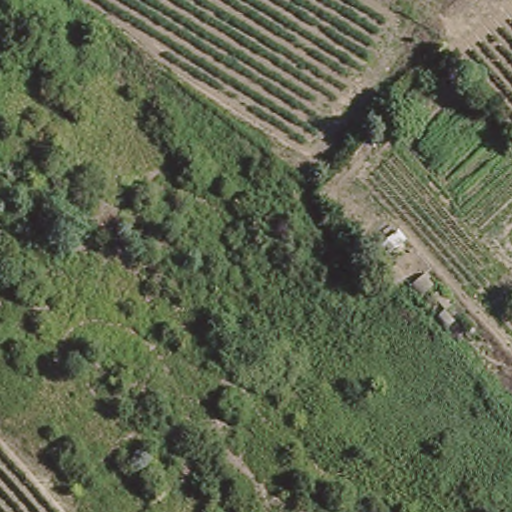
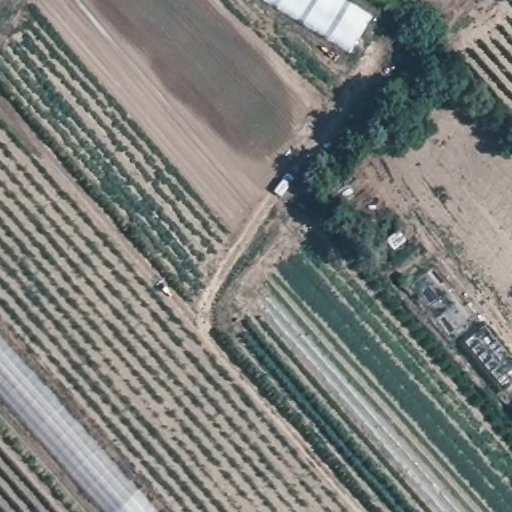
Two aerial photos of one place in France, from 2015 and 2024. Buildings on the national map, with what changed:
new [(263,0),(343,0),(372,17),(350,51),(263,0)]
new [(0,397),(0,335),(157,512),(102,512),(0,397)]

